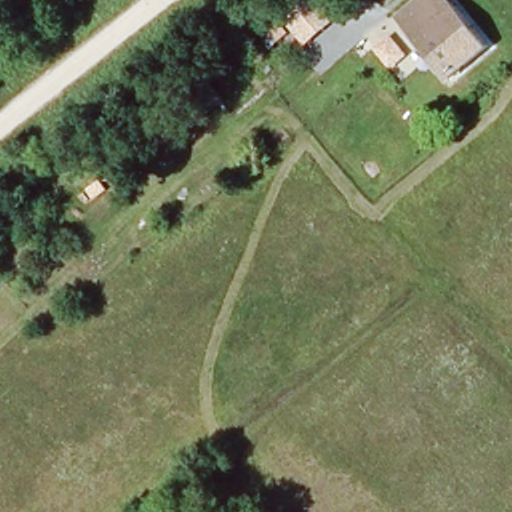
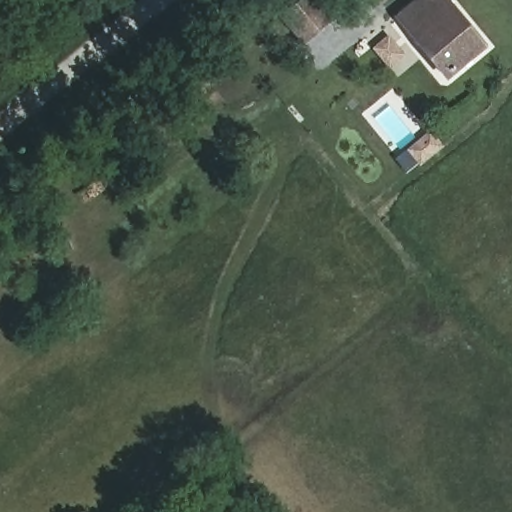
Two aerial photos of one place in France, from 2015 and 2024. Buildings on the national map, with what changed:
unchanged [(399,20),(423,0),(444,0),(486,49),(453,78),(399,20)]

